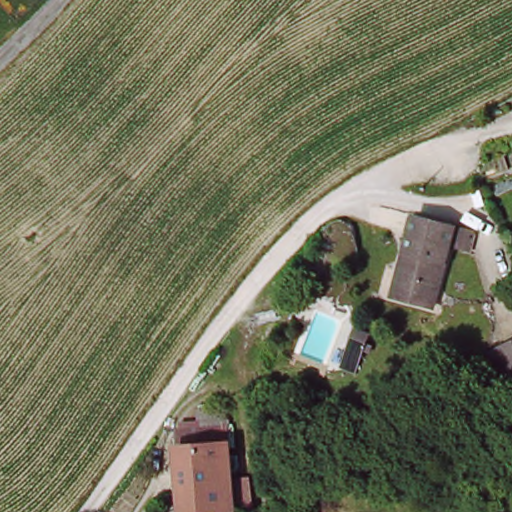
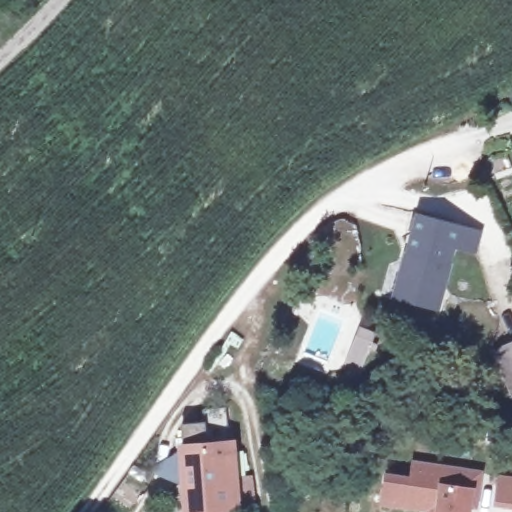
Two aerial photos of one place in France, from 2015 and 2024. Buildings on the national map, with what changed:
unchanged [(403,304),(408,278),(403,273),(413,224),(456,230),(477,233),(475,251),(453,248),(443,311),(403,304)]
new [(320,316),(334,319),(326,356),(312,353),(320,316)]
unchanged [(375,378),(343,368),(363,322),(388,332),(375,378)]
unchanged [(508,387),(487,359),(512,341),(512,388),(508,387)]
unchanged [(175,427),(193,423),(193,409),(229,407),(231,438),(238,512),(234,512),(180,512),(174,444),(175,427)]
new [(385,507),(387,480),(412,481),(413,465),(481,471),(480,490),(478,505),(471,504),(471,512),(433,512),(433,511),(385,507)]
new [(501,480),(512,481),(512,506),(499,505),(501,480)]

